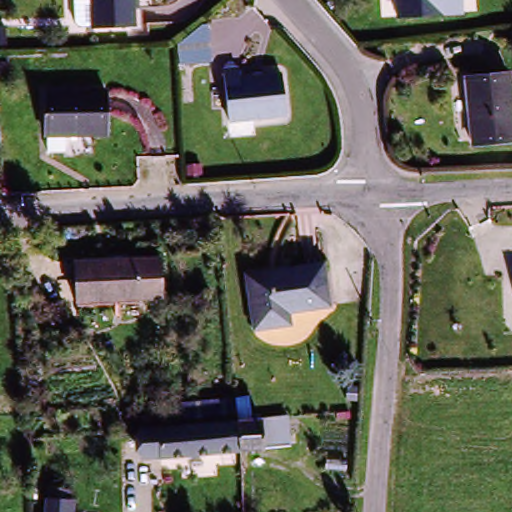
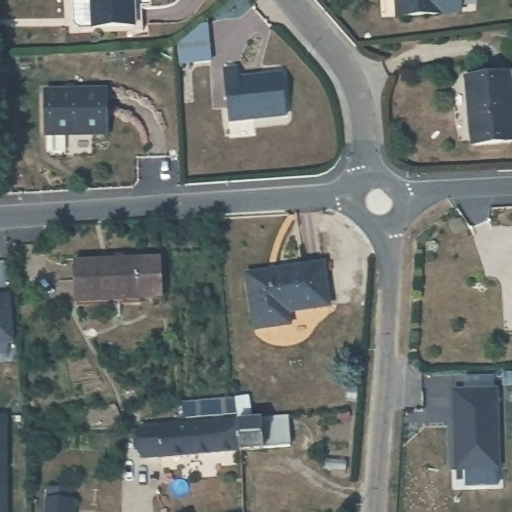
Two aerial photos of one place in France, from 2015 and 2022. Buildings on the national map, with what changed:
unchanged [(95,32),(89,0),(126,0),(131,26),(95,32)]
unchanged [(394,22),(393,17),(392,0),(455,0),(457,16),(394,22)]
unchanged [(181,44),(190,36),(207,21),(211,61),(183,64),(181,44)]
unchanged [(291,119),(231,125),(229,86),(227,76),(247,74),(248,85),(290,81),(291,119)]
unchanged [(503,77),(509,139),(471,141),(466,79),(503,77)]
unchanged [(52,155),(51,139),(50,139),(46,92),(105,87),(109,135),(70,138),(70,153),(52,155)]
unchanged [(320,261),(320,304),(283,307),(282,319),(249,321),(247,265),(320,261)]
unchanged [(161,263),(161,304),(97,306),(96,265),(161,263)]
new [(0,341),(0,297),(7,297),(12,340),(0,341)]
new [(495,386),(498,466),(455,468),(451,388),(495,386)]
unchanged [(189,400),(215,399),(235,397),(236,420),(237,423),(239,450),(146,458),(144,426),(189,423),(189,400)]
new [(0,415),(1,415),(4,512),(0,512),(0,415)]
unchanged [(239,450),(237,423),(280,421),(281,453),(239,455),(239,450)]
unchanged [(75,511),(75,512),(42,512),(42,498),(43,487),(66,488),(65,499),(65,510),(75,511)]

